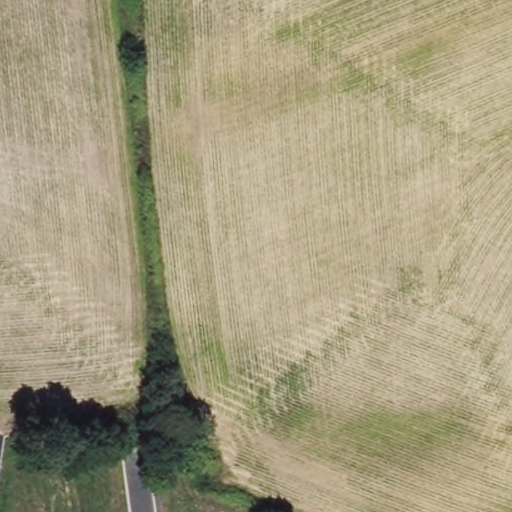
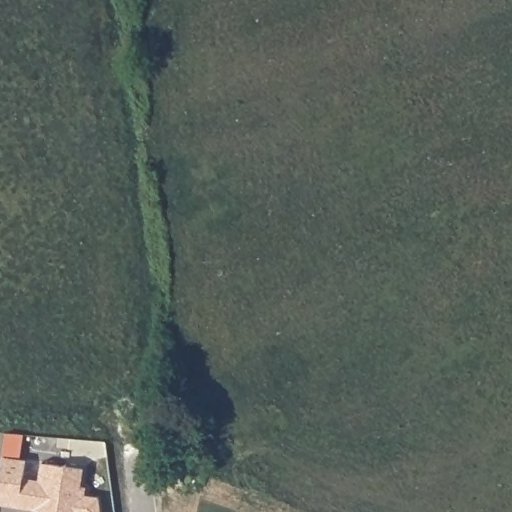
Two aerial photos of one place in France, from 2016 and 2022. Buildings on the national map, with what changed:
new [(78,489),(83,490),(80,512),(32,512),(16,510),(0,507),(0,462),(0,459),(23,463),(20,481),(36,483),(39,465),(80,471),(78,489)]

